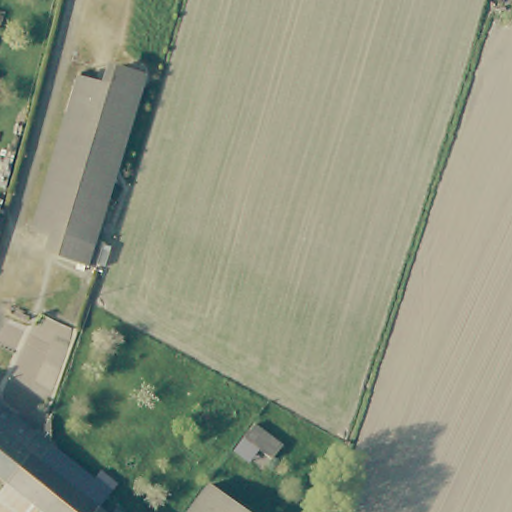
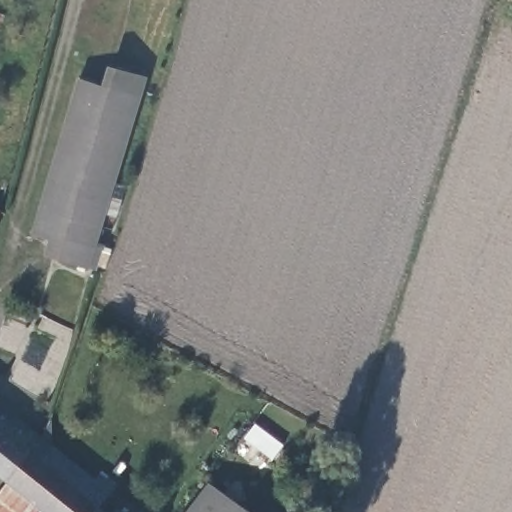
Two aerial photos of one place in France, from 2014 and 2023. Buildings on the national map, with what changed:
unchanged [(40,237),(87,85),(145,102),(100,257),(40,237)]
unchanged [(1,219),(0,224),(0,219),(1,219)]
unchanged [(6,492),(0,487),(0,414),(4,411),(14,420),(42,443),(56,456),(94,487),(102,477),(118,491),(101,512),(31,512),(6,492)]
unchanged [(31,512),(0,512),(0,500),(6,492),(31,512)]
unchanged [(210,500),(225,512),(199,512),(210,500)]

